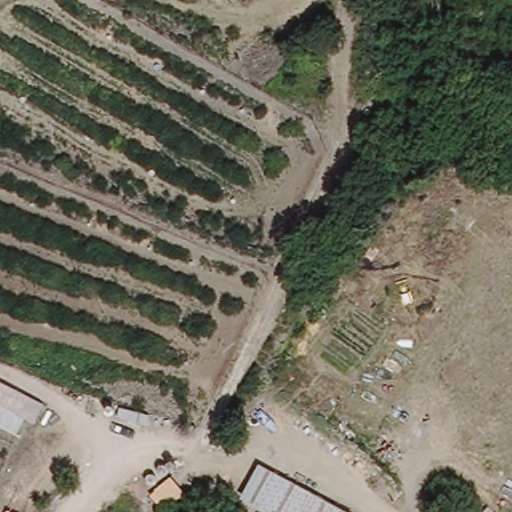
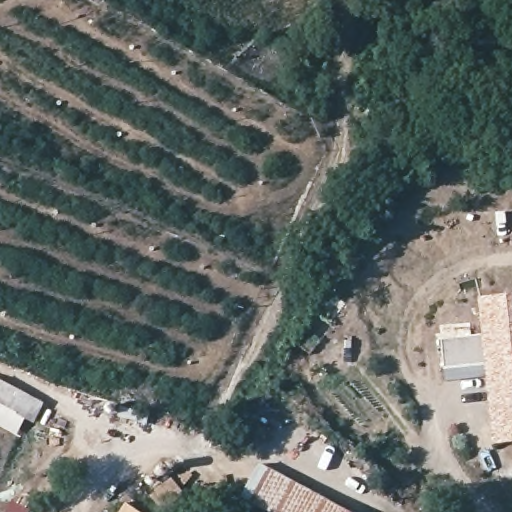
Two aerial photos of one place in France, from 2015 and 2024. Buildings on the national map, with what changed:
new [(484,367),(442,371),(440,338),(481,335),(479,299),(512,296),(512,444),(492,446),(484,367)]
unchanged [(42,410),(31,424),(25,423),(15,440),(0,434),(0,383),(42,410)]
unchanged [(265,512),(239,497),(257,467),(332,512),(265,512)]
unchanged [(186,496),(162,509),(147,488),(176,474),(186,496)]
unchanged [(7,512),(8,510),(12,512),(7,512)]

